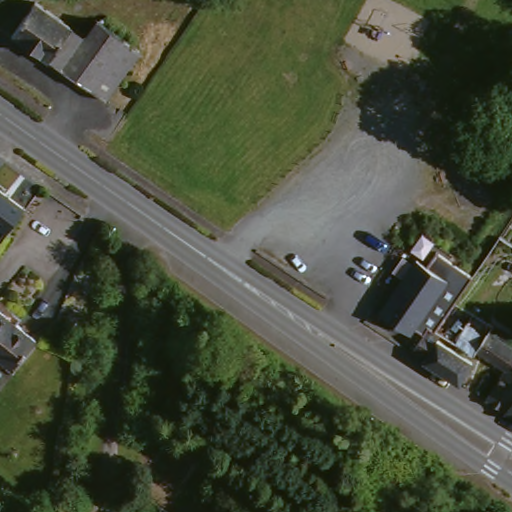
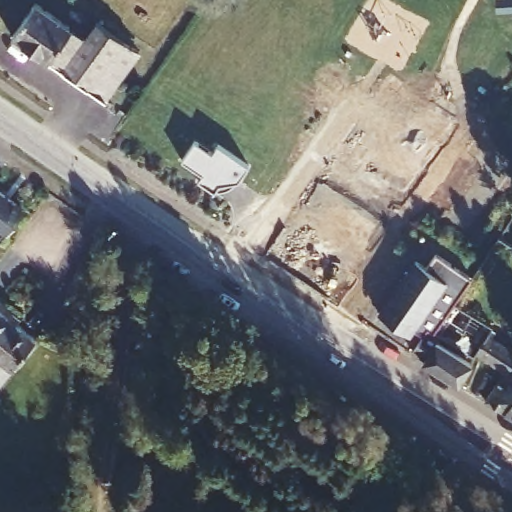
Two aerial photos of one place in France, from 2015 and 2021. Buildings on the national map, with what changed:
unchanged [(87,35),(100,19),(144,48),(108,97),(15,32),(38,1),(87,35)]
new [(192,137),(210,148),(215,140),(247,162),(237,177),(216,181),(211,188),(195,177),(199,171),(179,157),(192,137)]
unchanged [(15,173),(36,188),(25,203),(33,208),(23,222),(17,217),(12,224),(1,216),(0,218),(0,185),(4,188),(15,173)]
unchanged [(404,322),(399,329),(372,309),(389,284),(408,255),(418,262),(427,249),(459,270),(444,292),(423,325),(418,322),(414,328),(404,322)]
unchanged [(0,311),(34,337),(11,369),(0,361),(0,311)]
unchanged [(413,353),(414,350),(404,343),(408,337),(414,328),(418,322),(423,325),(429,329),(426,334),(459,356),(447,375),(434,367),(413,353)]
unchanged [(489,354),(484,351),(497,333),(512,344),(512,370),(489,354)]
unchanged [(494,399),(512,370),(512,411),(494,399)]

